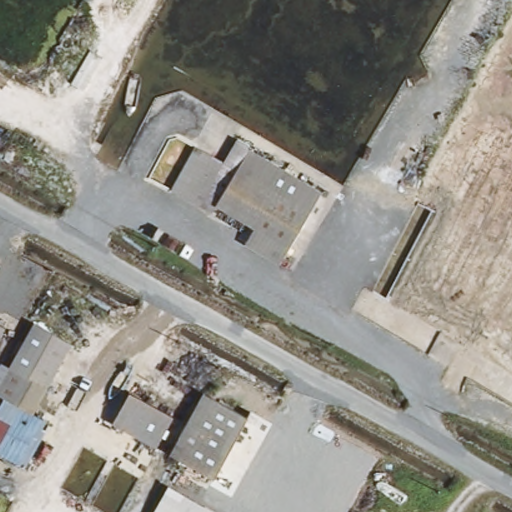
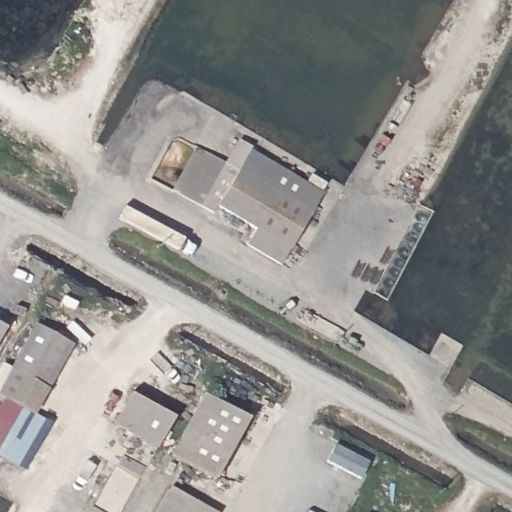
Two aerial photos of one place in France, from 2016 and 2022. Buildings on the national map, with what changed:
unchanged [(172,194),(194,150),(222,164),(198,208),(172,194)]
unchanged [(243,159),(316,202),(287,254),(215,209),(243,159)]
unchanged [(31,419),(0,401),(0,368),(2,364),(9,369),(33,322),(71,343),(31,419)]
unchanged [(0,338),(0,330),(4,332),(0,338)]
unchanged [(173,423),(157,452),(114,427),(130,397),(173,423)]
unchanged [(243,422),(209,484),(168,460),(203,397),(243,422)]

